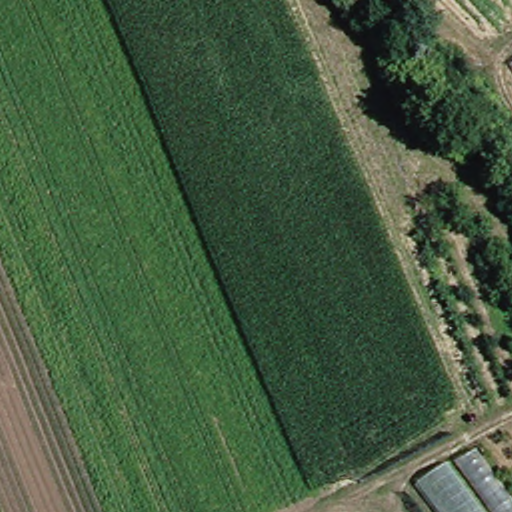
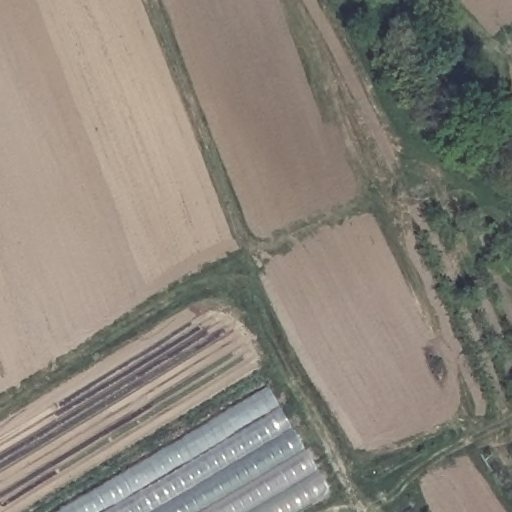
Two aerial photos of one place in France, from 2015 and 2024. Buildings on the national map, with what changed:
unchanged [(509,63),(512,61),(512,67),(509,63)]
new [(291,512),(63,512),(268,391),(326,491),(291,512)]
demolished [(404,489),(449,455),(491,512),(421,512),(404,489)]

